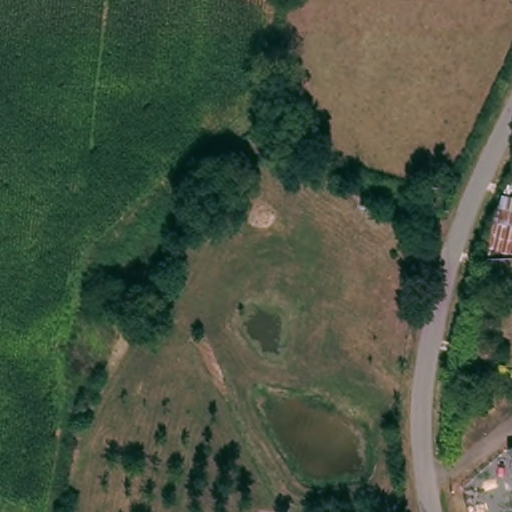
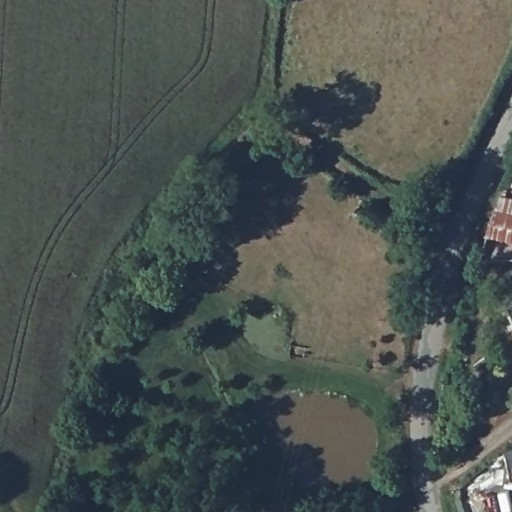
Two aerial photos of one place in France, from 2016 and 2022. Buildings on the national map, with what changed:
unchanged [(512,253),(488,247),(499,195),(512,196),(512,253)]
unchanged [(512,449),(512,466),(508,450),(512,449)]

